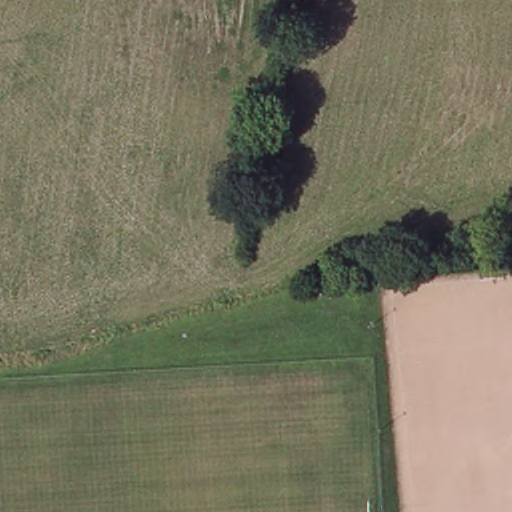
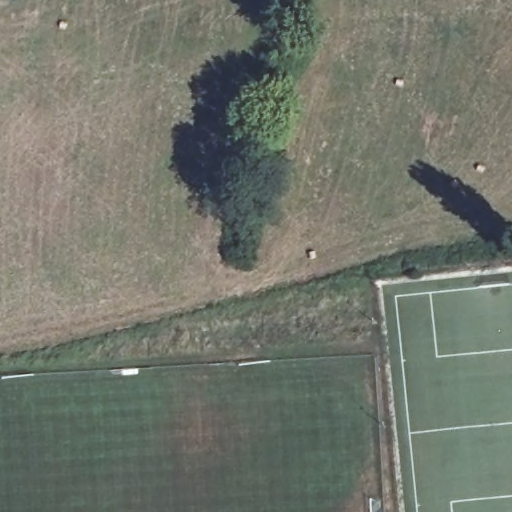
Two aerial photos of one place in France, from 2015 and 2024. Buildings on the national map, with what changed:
unchanged [(301,28),(297,20),(305,15),(310,23),(301,28)]

